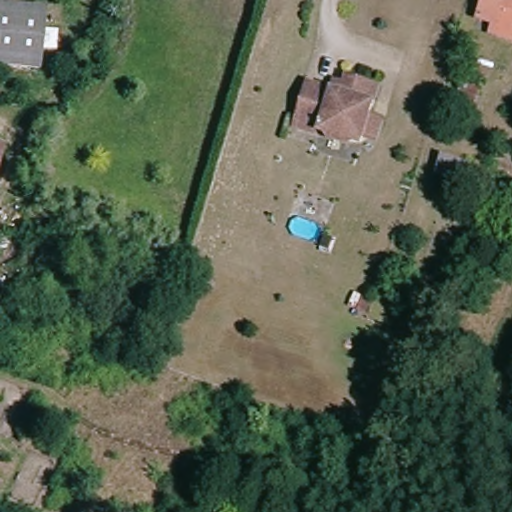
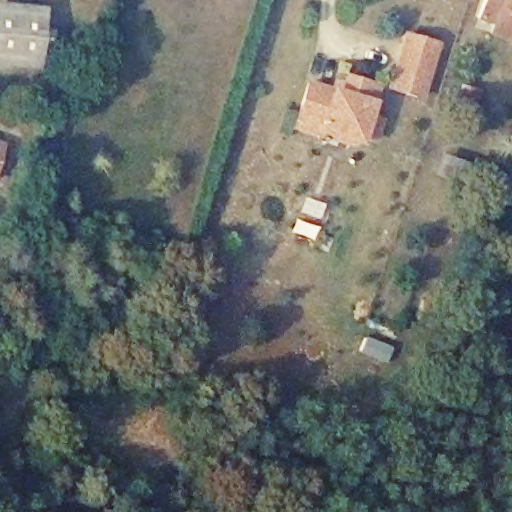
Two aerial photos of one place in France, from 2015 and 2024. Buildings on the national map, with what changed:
unchanged [(0,0),(2,0),(1,2),(45,7),(39,67),(0,63),(0,0)]
unchanged [(491,36),(495,22),(483,19),(489,0),(512,0),(512,42),(491,36)]
new [(387,86),(403,32),(440,42),(422,100),(387,86)]
unchanged [(369,138),(362,135),(358,146),(320,134),(294,125),(297,117),(309,82),(341,92),(347,76),(378,85),(368,115),(376,119),(369,138)]
unchanged [(472,115),(452,107),(461,84),(480,90),(472,115)]
unchanged [(0,138),(4,140),(0,153),(0,138)]
unchanged [(462,186),(434,177),(441,155),(470,164),(462,186)]

